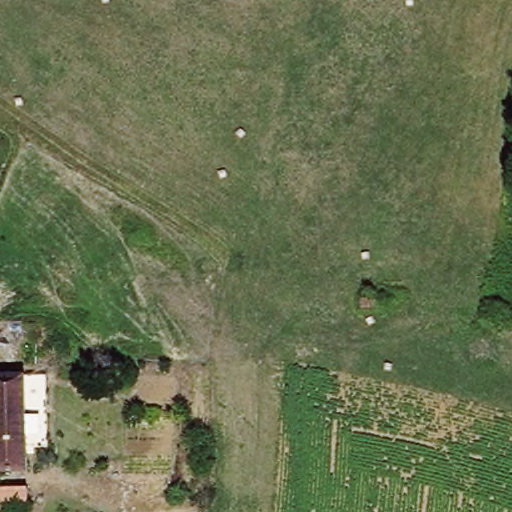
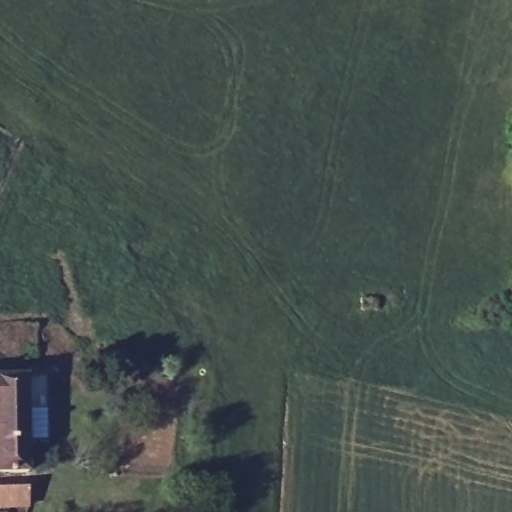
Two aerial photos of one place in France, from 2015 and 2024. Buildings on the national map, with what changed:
unchanged [(26,389),(26,479),(0,479),(0,389),(26,389)]
unchanged [(0,510),(0,491),(25,492),(25,510),(0,510)]

